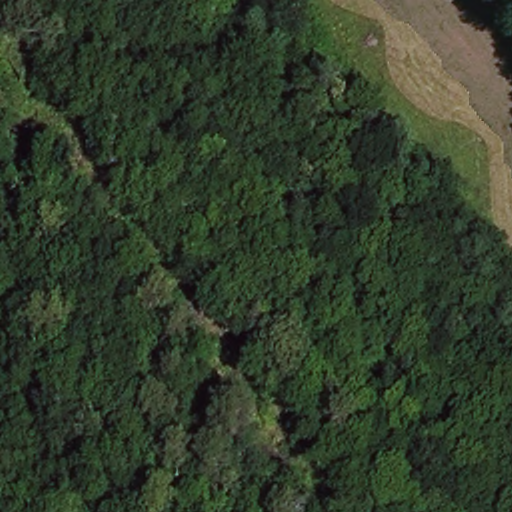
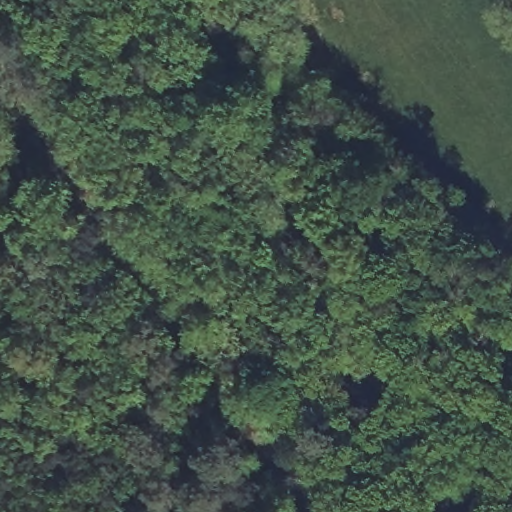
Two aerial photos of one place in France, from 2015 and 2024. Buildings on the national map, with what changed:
[]

